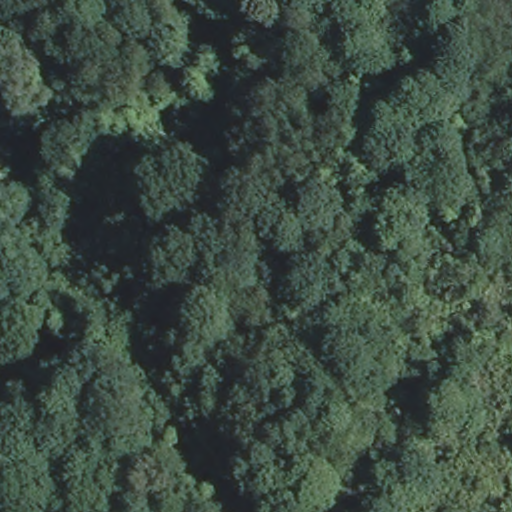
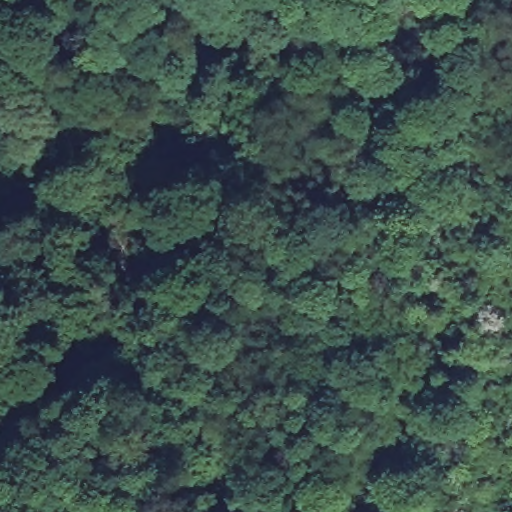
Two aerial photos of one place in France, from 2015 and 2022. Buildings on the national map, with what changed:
[]

